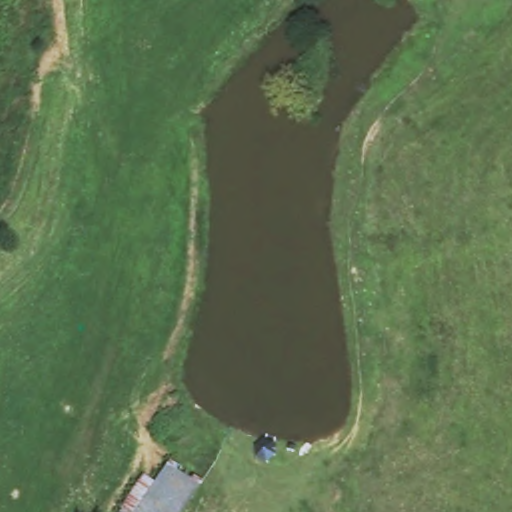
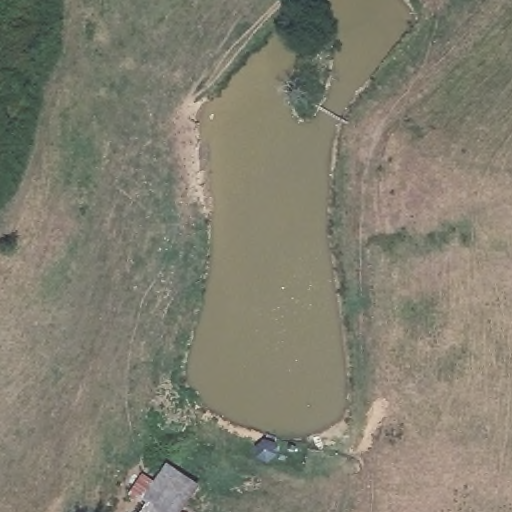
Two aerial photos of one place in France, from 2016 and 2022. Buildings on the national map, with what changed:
unchanged [(154,478),(168,459),(203,483),(183,512),(112,512),(144,470),(154,478)]

